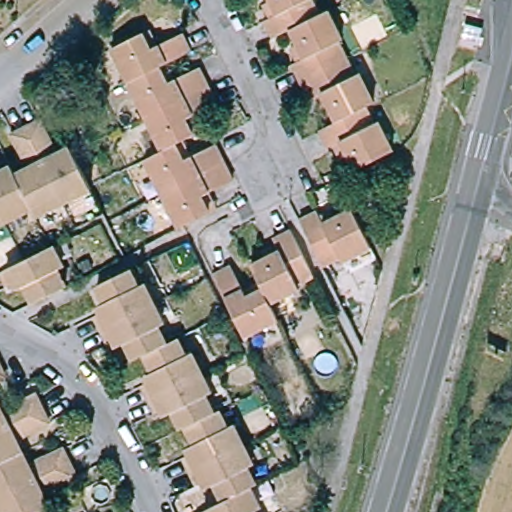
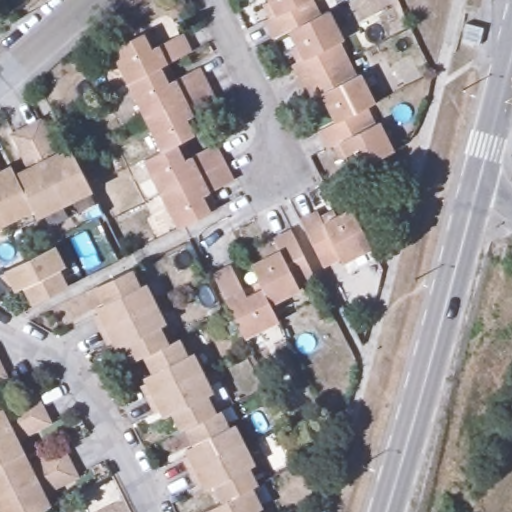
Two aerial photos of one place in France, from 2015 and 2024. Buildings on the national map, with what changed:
unchanged [(280,38),(268,15),(275,11),(269,0),(314,0),(321,15),(297,28),(280,38)]
unchanged [(328,11),(341,36),(337,40),(346,58),(304,80),(294,61),(310,53),(297,28),(321,15),(328,11)]
unchanged [(111,55),(136,41),(144,56),(173,39),(183,55),(152,72),(127,85),(111,55)]
unchanged [(328,87),(311,95),(304,80),(346,58),(356,80),(361,76),(374,104),(370,106),(344,119),(328,87)]
unchanged [(143,116),(127,85),(152,72),(160,88),(191,71),(198,86),(143,116)]
unchanged [(209,107),(178,123),(184,137),(166,146),(161,149),(143,116),(198,86),(209,107)]
unchanged [(346,138),(336,142),(328,128),(344,119),(370,106),(378,123),(383,120),(397,147),(361,165),(346,138)]
unchanged [(36,123),(53,156),(68,147),(90,190),(62,204),(23,130),(36,123)]
unchanged [(62,204),(35,217),(32,210),(13,176),(27,169),(10,136),(23,130),(62,204)]
unchanged [(174,163),(206,146),(217,168),(161,197),(142,160),(161,149),(166,146),(174,163)]
unchanged [(226,187),(200,200),(208,218),(179,233),(161,197),(217,168),(226,187)]
unchanged [(0,218),(0,175),(10,169),(13,176),(32,210),(3,225),(0,218)]
unchanged [(344,262),(341,256),(325,263),(301,216),(316,209),(325,222),(361,203),(381,243),(344,262)]
unchanged [(0,227),(0,218),(3,225),(0,227)]
unchanged [(213,275),(231,265),(246,294),(256,290),(247,272),(270,258),(263,245),(280,236),(306,282),(291,288),(295,295),(266,309),(276,326),(248,341),(213,275)]
unchanged [(51,245),(63,268),(60,271),(68,289),(38,306),(23,281),(10,287),(1,272),(51,245)]
unchanged [(97,318),(109,311),(100,293),(130,275),(138,290),(145,287),(155,307),(105,334),(97,318)]
unchanged [(136,364),(123,341),(110,346),(105,334),(155,307),(166,328),(160,332),(166,347),(145,359),(136,364)]
unchanged [(143,389),(156,382),(145,359),(166,347),(175,343),(183,359),(191,356),(200,375),(149,402),(143,389)]
unchanged [(0,376),(0,371),(2,375),(0,376)]
unchanged [(185,431),(181,432),(169,409),(156,415),(149,402),(200,375),(211,398),(206,402),(213,417),(185,431)]
unchanged [(37,395),(43,409),(0,429),(0,410),(0,412),(37,395)]
unchanged [(50,422),(16,438),(23,453),(0,464),(0,429),(43,409),(50,422)]
unchanged [(218,414),(225,432),(231,429),(241,449),(188,476),(183,464),(196,457),(185,431),(213,417),(218,414)]
unchanged [(253,470),(246,473),(253,490),(250,492),(222,505),(211,485),(196,490),(188,476),(241,449),(253,470)]
unchanged [(30,466),(65,450),(71,463),(0,498),(0,464),(23,453),(30,466)]
unchanged [(0,510),(0,498),(71,463),(76,474),(43,492),(50,506),(37,512),(1,512),(0,510)]
unchanged [(260,512),(210,512),(222,505),(250,492),(260,512)]

